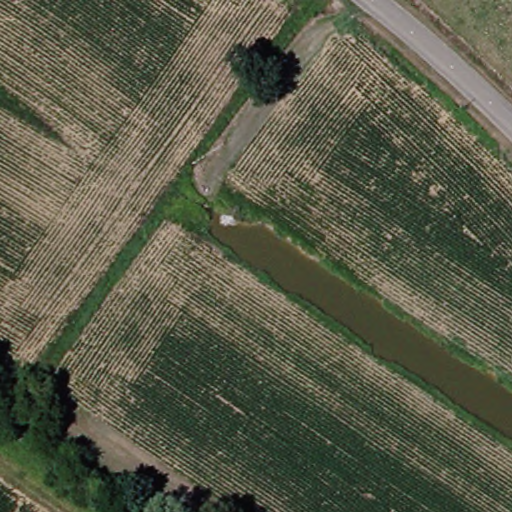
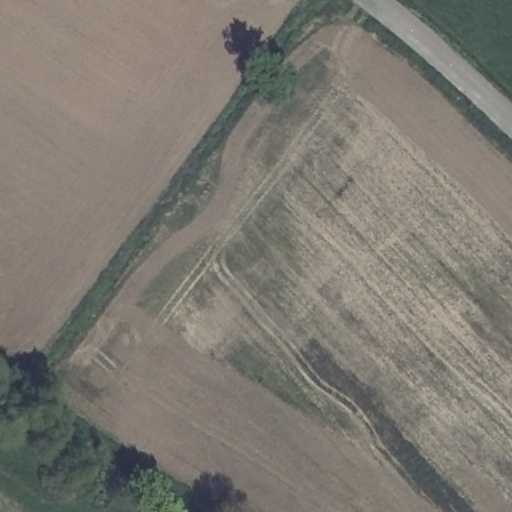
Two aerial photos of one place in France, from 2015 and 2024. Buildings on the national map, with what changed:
[]

